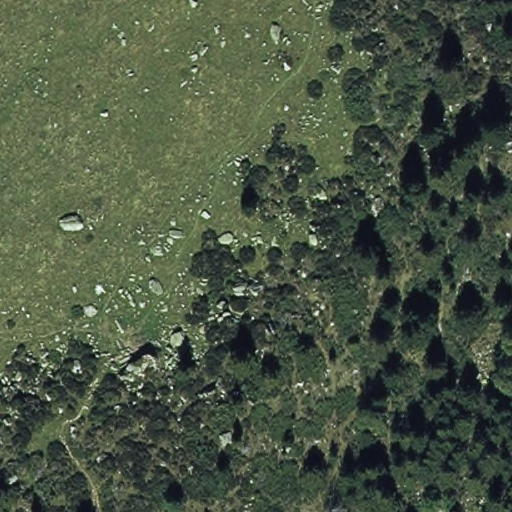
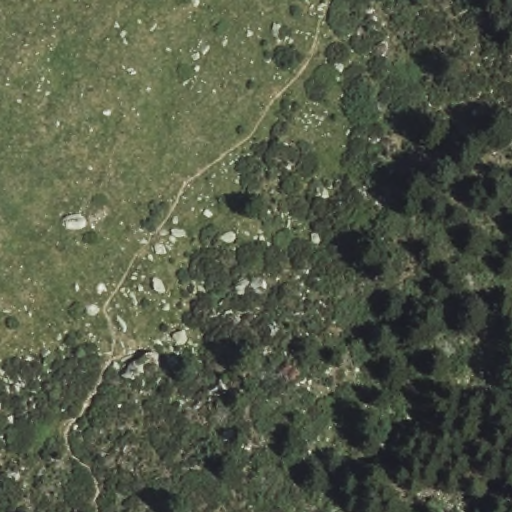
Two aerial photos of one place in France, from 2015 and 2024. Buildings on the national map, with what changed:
unchanged [(143,353),(151,365),(138,377),(133,371),(130,365),(143,353)]

